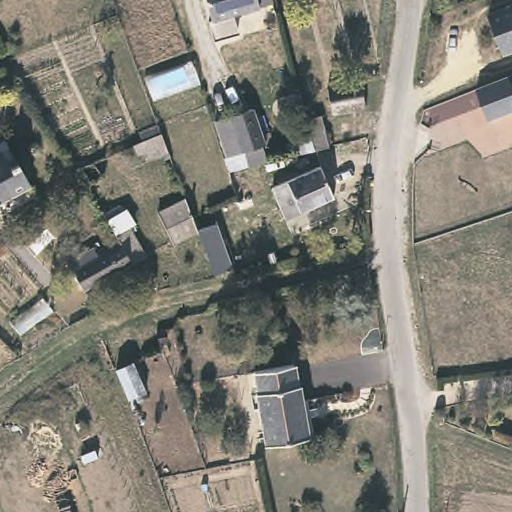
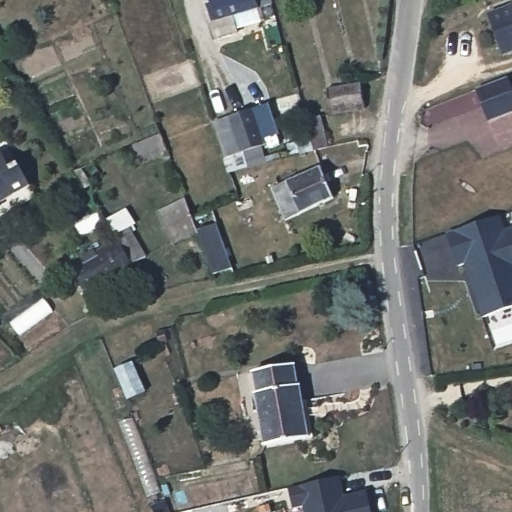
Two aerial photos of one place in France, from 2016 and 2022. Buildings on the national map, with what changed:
unchanged [(235,19),(240,36),(215,43),(210,25),(214,24),(207,0),(257,0),(260,12),(235,19)]
unchanged [(501,52),(486,12),(512,2),(512,48),(501,52)]
unchanged [(486,122),(475,89),(507,77),(512,90),(512,112),(486,122)]
unchanged [(366,107),(331,118),(325,92),(360,82),(366,107)]
unchanged [(212,123),(255,109),(267,143),(242,151),(247,166),(230,172),(212,123)]
unchanged [(295,119),(311,117),(323,115),(326,143),(327,148),(299,151),(297,139),(295,119)]
unchanged [(132,144),(160,133),(170,157),(164,160),(160,154),(150,158),(148,151),(137,155),(132,144)]
unchanged [(21,159),(29,155),(44,180),(10,200),(13,207),(0,215),(0,154),(14,146),(21,159)]
unchanged [(268,190),(283,184),(315,168),(330,198),(296,214),(281,221),(268,190)]
unchanged [(196,231),(171,242),(164,226),(157,209),(183,197),(189,213),(195,228),(196,231)]
new [(482,317),(465,263),(457,265),(446,232),(501,215),(505,227),(512,225),(512,307),(482,317)]
unchanged [(131,265),(125,250),(117,233),(129,228),(136,244),(143,260),(131,265)]
unchanged [(72,273),(96,259),(92,254),(116,240),(120,246),(123,250),(131,265),(131,267),(84,294),(72,273)]
unchanged [(268,365),(285,359),(292,381),(296,380),(312,433),(290,440),(268,365)]
unchanged [(134,364),(143,395),(125,400),(116,369),(134,364)]
unchanged [(266,447),(250,394),(252,393),(246,372),(268,365),(290,440),(266,447)]
new [(303,505),(293,507),(288,488),(340,476),(344,494),(366,490),(372,512),(305,512),(303,505)]

